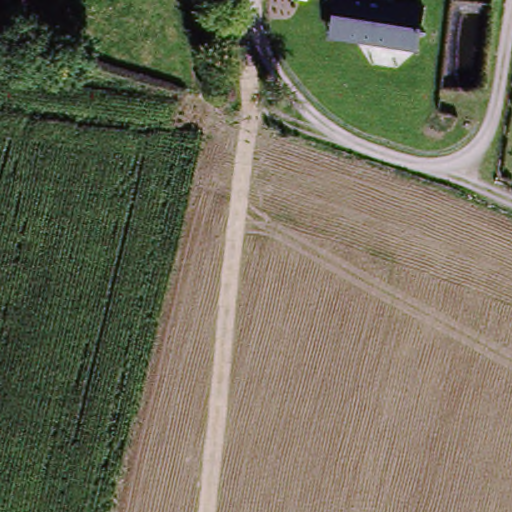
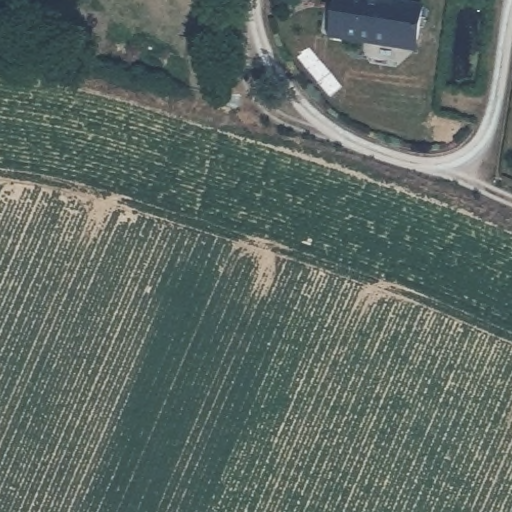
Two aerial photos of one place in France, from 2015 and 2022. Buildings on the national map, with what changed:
unchanged [(333,0),(393,0),(393,1),(422,6),(417,52),(328,40),(333,0)]

